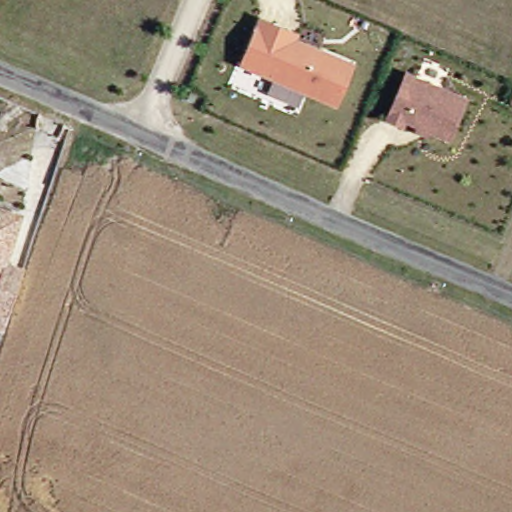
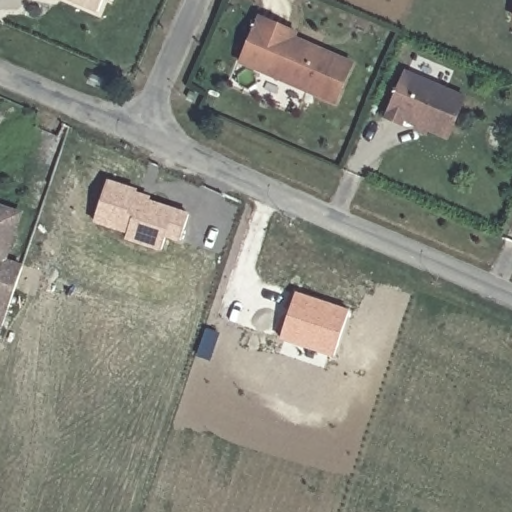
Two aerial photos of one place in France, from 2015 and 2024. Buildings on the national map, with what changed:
new [(99,10),(75,0),(103,0),(99,10)]
unchanged [(286,31),(293,34),(291,39),(349,65),(332,104),(238,62),(257,18),(286,31)]
unchanged [(409,71),(467,100),(448,138),(406,117),(403,122),(388,115),(409,71)]
unchanged [(185,94),(191,97),(188,104),(182,100),(185,94)]
unchanged [(161,172),(156,183),(144,179),(149,168),(161,172)]
new [(109,179),(140,189),(139,193),(160,199),(159,203),(190,212),(180,242),(165,238),(163,245),(95,223),(109,179)]
unchanged [(4,317),(1,324),(0,324),(0,205),(18,211),(3,259),(21,265),(4,317)]
new [(349,309),(333,357),(282,340),(298,292),(349,309)]

